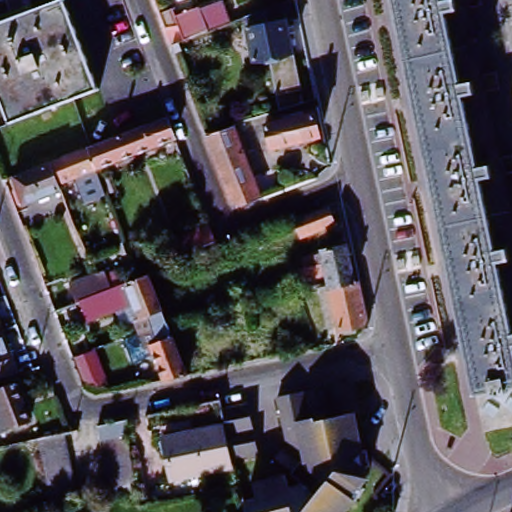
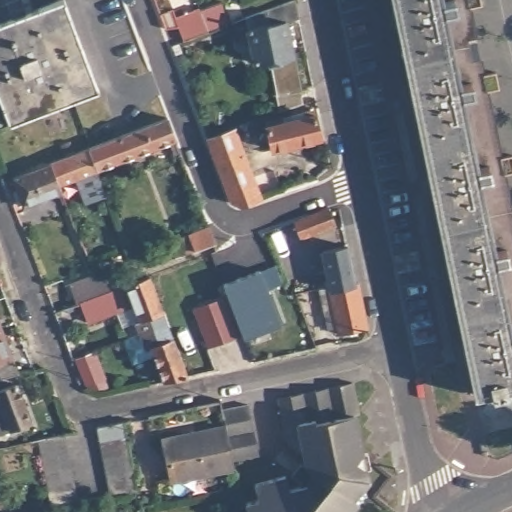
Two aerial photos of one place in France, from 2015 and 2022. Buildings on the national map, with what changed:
unchanged [(245,26),(247,25),(245,14),(280,0),(292,0),(295,15),(285,18),(290,50),(267,55),(252,57),(245,26)]
unchanged [(481,425),(392,0),(441,0),(512,352),(512,418),(481,425)]
unchanged [(465,32),(470,53),(478,52),(512,214),(512,352),(441,0),(467,0),(474,30),(465,32)]
unchanged [(8,125),(0,104),(0,24),(60,1),(95,91),(8,125)]
unchanged [(168,18),(192,9),(192,10),(192,11),(215,2),(224,25),(200,34),(177,42),(168,18)]
unchanged [(290,50),(301,100),(277,107),(267,55),(290,50)]
unchanged [(318,133),(256,147),(251,126),(290,116),(289,111),(312,106),(318,133)]
unchanged [(86,149),(164,118),(173,142),(95,172),(86,149)]
unchanged [(263,201),(250,207),(235,204),(210,137),(235,127),(263,201)]
unchanged [(95,172),(57,187),(47,164),(86,149),(95,172)]
unchanged [(57,187),(59,192),(22,207),(21,205),(15,207),(10,193),(15,191),(10,178),(47,164),(57,187)]
unchanged [(338,225),(302,239),(296,222),(332,209),(338,225)]
unchanged [(217,245),(192,255),(186,240),(206,232),(204,227),(209,225),(217,245)]
unchanged [(333,290),(329,267),(322,268),(320,257),(326,256),(325,252),(350,247),(357,284),(333,290)]
unchanged [(120,311),(90,322),(82,304),(80,302),(74,285),(100,275),(94,263),(107,259),(113,276),(127,271),(133,285),(152,277),(170,325),(142,336),(137,324),(137,323),(126,327),(120,311)]
new [(283,326),(247,340),(226,286),(262,272),(283,326)]
unchanged [(357,284),(360,283),(370,330),(343,336),(341,327),(332,330),(324,292),(333,290),(357,284)]
new [(210,348),(197,310),(230,297),(245,335),(210,348)]
unchanged [(0,317),(4,326),(0,327),(0,317)]
unchanged [(170,325),(190,377),(166,383),(154,350),(148,352),(142,336),(170,325)]
unchanged [(4,327),(14,354),(20,371),(0,376),(0,327),(4,326),(4,327)]
unchanged [(31,419),(0,431),(0,389),(17,382),(31,419)]
unchanged [(240,504),(254,501),(250,487),(280,478),(285,491),(295,488),(297,485),(292,482),(302,469),(307,472),(308,471),(307,465),(302,465),(300,452),(294,453),(282,445),(276,415),(274,405),(273,401),(344,386),(347,385),(354,415),(351,416),(359,452),(353,460),(362,467),(365,482),(359,487),(364,491),(350,512),(243,512),(240,504)]
unchanged [(227,423),(225,413),(224,407),(242,403),(250,402),(252,412),(260,452),(234,457),(227,423)]
unchanged [(110,498),(102,460),(96,430),(127,423),(133,452),(142,492),(110,498)]
unchanged [(234,457),(235,465),(177,477),(168,436),(227,423),(234,457)]
unchanged [(61,436),(75,505),(44,512),(43,510),(29,442),(61,436)]

